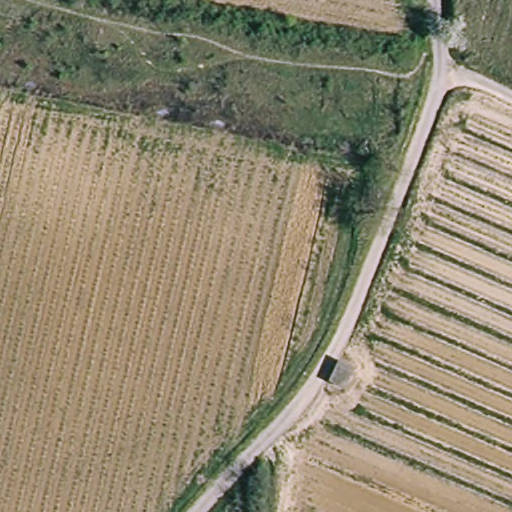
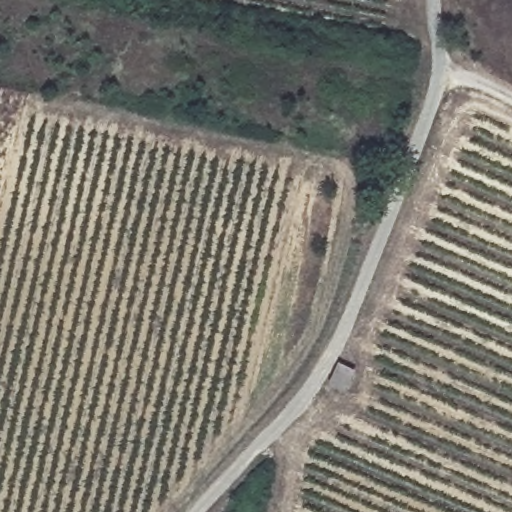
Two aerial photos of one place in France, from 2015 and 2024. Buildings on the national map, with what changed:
unchanged [(350,398),(330,387),(341,364),(360,374),(350,398)]

